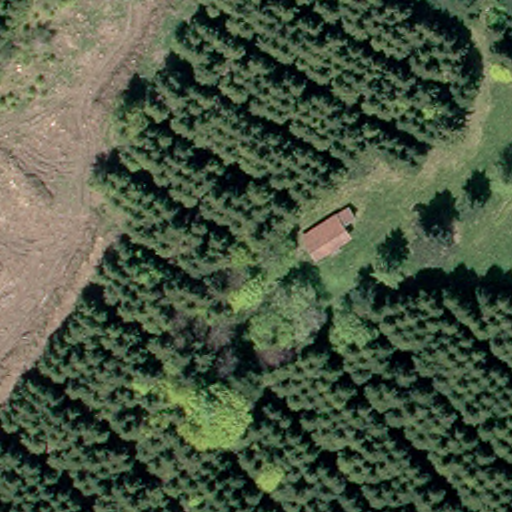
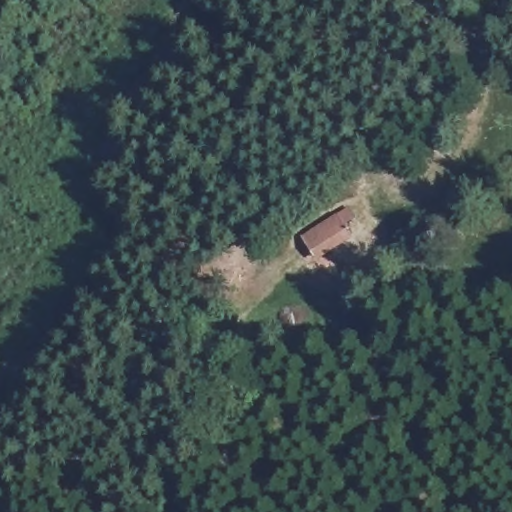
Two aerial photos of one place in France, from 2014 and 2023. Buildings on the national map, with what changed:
unchanged [(360,219),(345,229),(350,242),(315,264),(298,238),(351,204),(360,219)]

